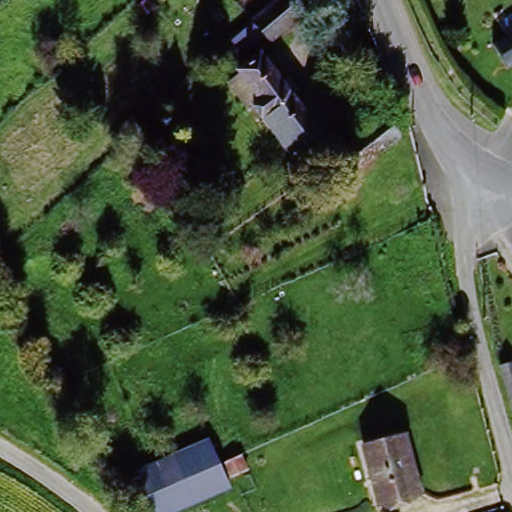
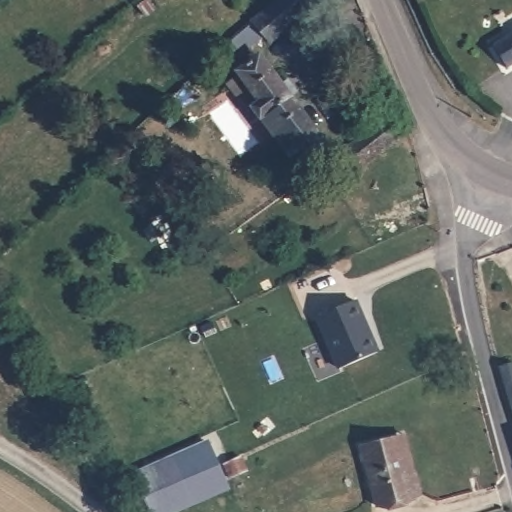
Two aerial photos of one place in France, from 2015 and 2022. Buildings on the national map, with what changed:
unchanged [(328,136),(288,160),(274,145),(268,144),(226,83),(236,71),(221,49),(277,0),(316,0),(258,50),(328,136)]
unchanged [(512,39),(512,65),(507,69),(496,50),(512,39)]
unchanged [(353,182),(335,159),(407,104),(415,130),(353,182)]
unchanged [(124,200),(142,184),(161,202),(143,220),(124,200)]
new [(352,300),(362,321),(360,322),(365,334),(367,333),(375,352),(338,369),(314,317),(352,300)]
unchanged [(497,369),(512,364),(512,417),(497,369)]
unchanged [(366,450),(408,440),(420,497),(378,506),(366,450)]
unchanged [(132,471),(210,441),(231,497),(193,512),(145,512),(132,471)]

